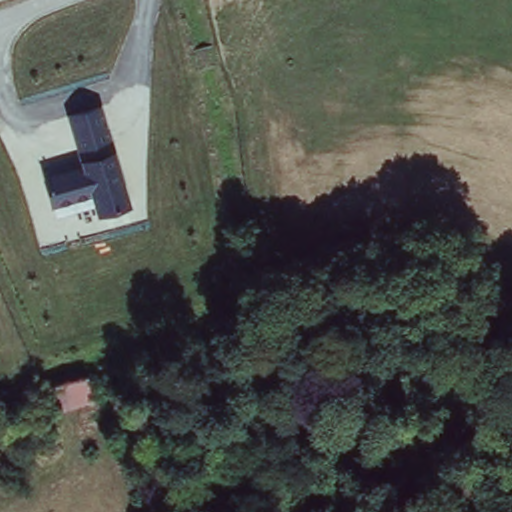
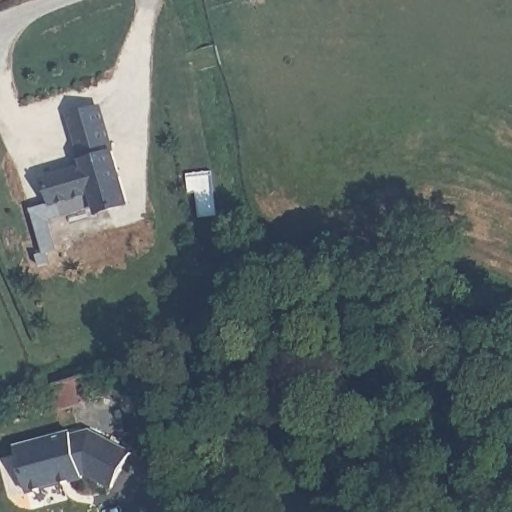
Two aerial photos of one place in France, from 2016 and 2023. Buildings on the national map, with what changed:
unchanged [(77,163),(65,114),(101,105),(112,149),(118,148),(133,205),(96,215),(90,195),(51,206),(41,173),(77,163)]
new [(87,425),(130,448),(112,484),(86,469),(24,483),(15,444),(87,425)]

